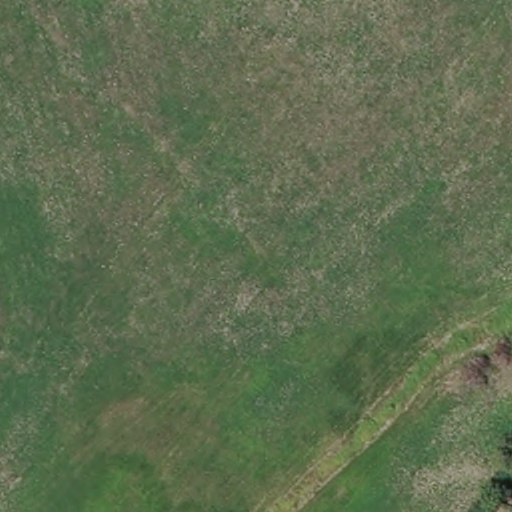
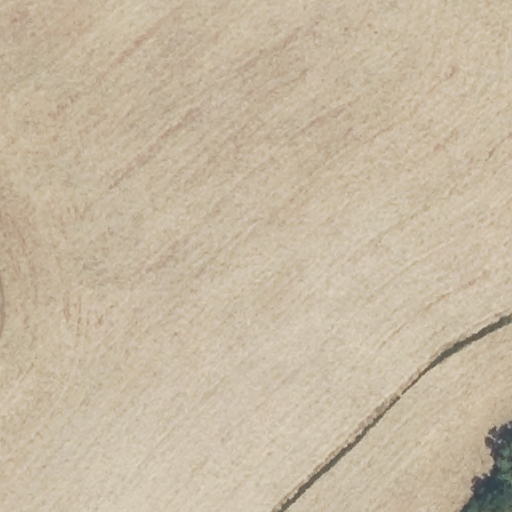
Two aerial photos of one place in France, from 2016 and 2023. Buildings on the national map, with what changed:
[]

